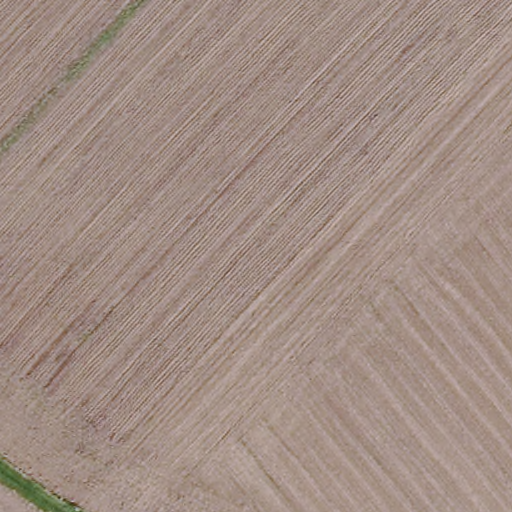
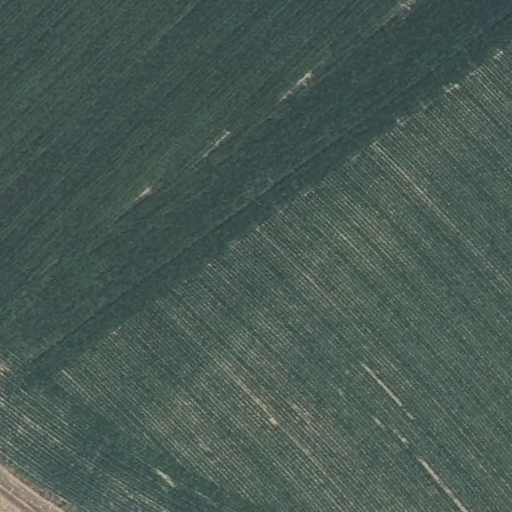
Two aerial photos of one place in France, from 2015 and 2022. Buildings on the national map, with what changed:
[]

